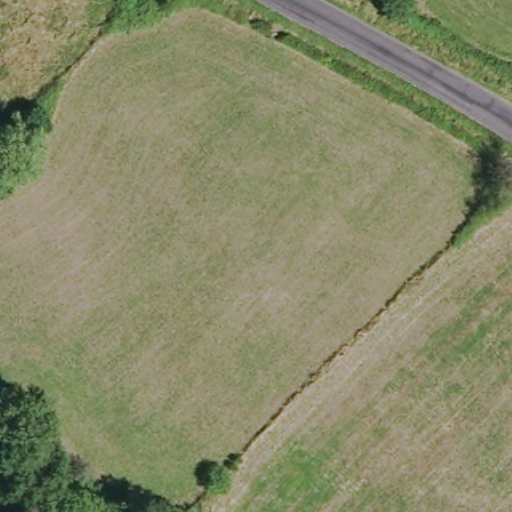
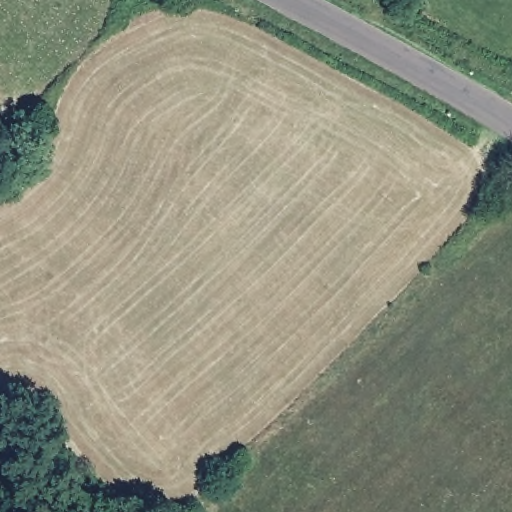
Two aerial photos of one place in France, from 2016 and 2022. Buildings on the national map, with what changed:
unchanged [(27,134),(17,146),(8,137),(18,127),(27,134)]
unchanged [(65,503),(47,476),(57,471),(76,498),(65,503)]

